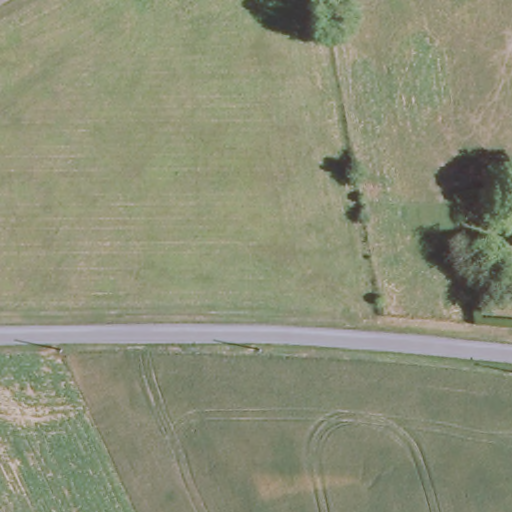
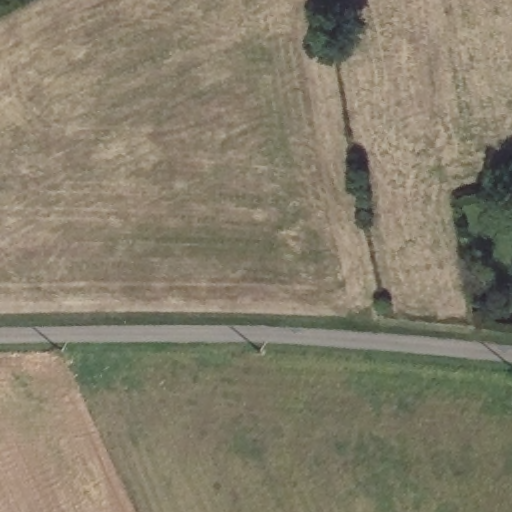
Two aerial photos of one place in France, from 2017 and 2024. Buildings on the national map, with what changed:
[]

